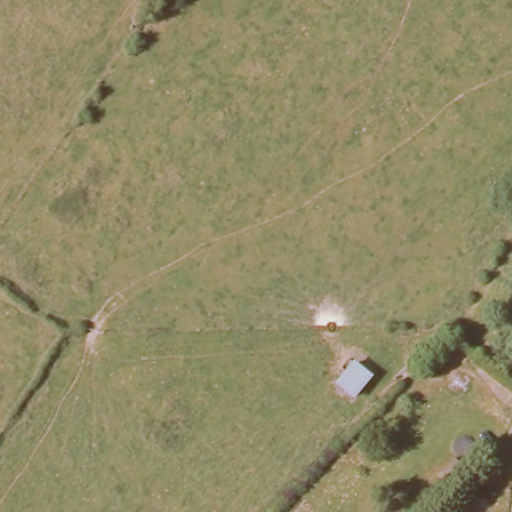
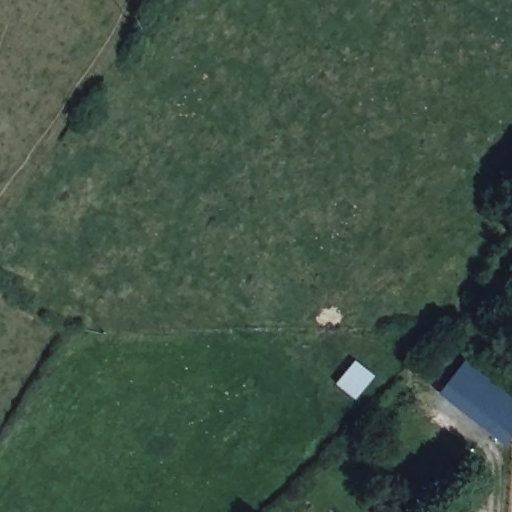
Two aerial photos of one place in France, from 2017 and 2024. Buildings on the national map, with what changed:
new [(503,448),(438,396),(465,363),(512,401),(512,437),(503,448)]

